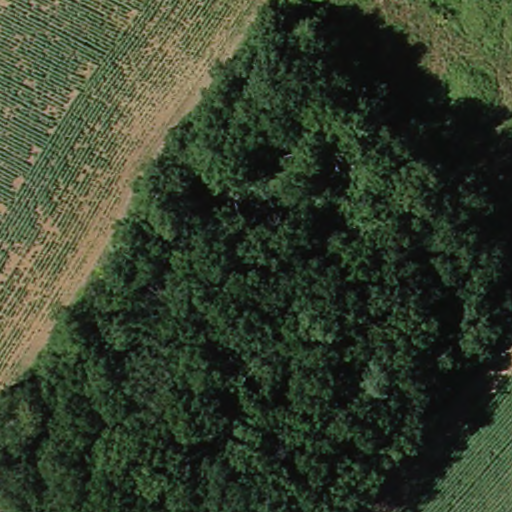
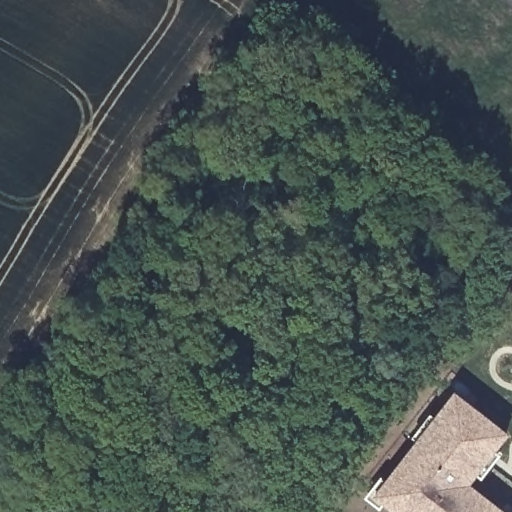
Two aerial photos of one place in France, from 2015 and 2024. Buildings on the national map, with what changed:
new [(475,486),(507,512),(396,512),(377,497),(458,394),(511,434),(475,486)]

